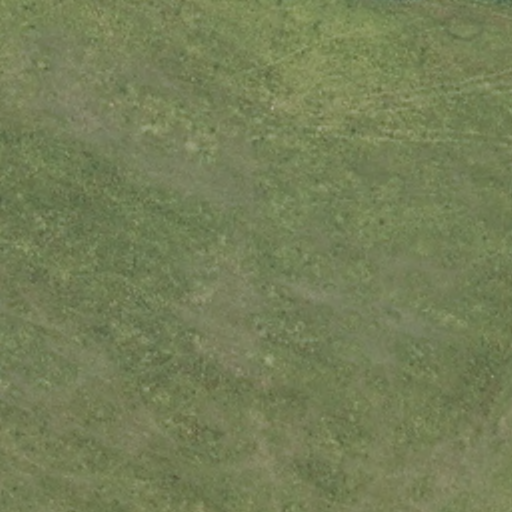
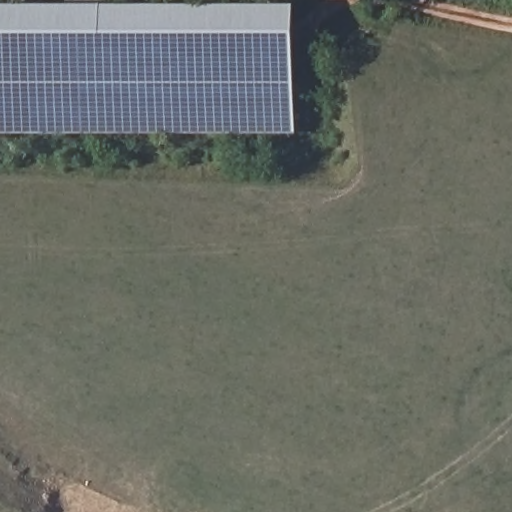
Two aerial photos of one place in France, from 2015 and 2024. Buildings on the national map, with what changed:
new [(0,133),(0,6),(295,6),(293,132),(0,133)]

